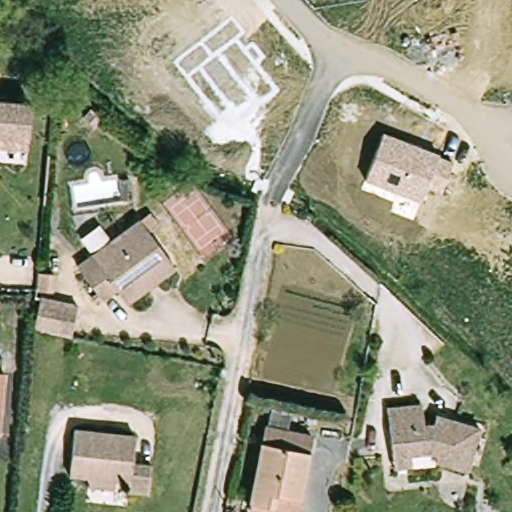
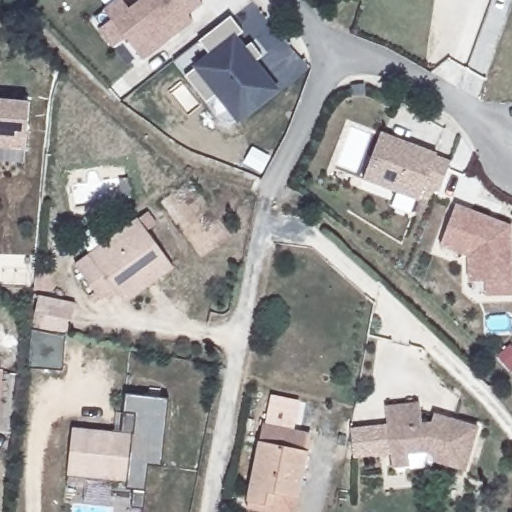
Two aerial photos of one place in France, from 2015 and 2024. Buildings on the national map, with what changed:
new [(141,55),(102,5),(109,0),(124,0),(128,4),(134,0),(199,0),(186,10),(191,16),(176,27),(171,32),(141,55)]
new [(186,75),(208,54),(200,41),(231,16),(244,32),(238,37),(246,46),(251,42),(263,57),(258,61),(281,90),(239,124),(216,95),(208,103),(186,75)]
unchanged [(1,138),(0,138),(0,102),(34,105),(31,140),(30,151),(0,148),(1,138)]
unchanged [(453,159),(441,190),(425,184),(420,199),(365,179),(382,131),(438,152),(453,159)]
unchanged [(128,179),(131,200),(121,201),(119,181),(128,179)]
new [(456,204),(512,225),(512,296),(486,296),(485,282),(468,282),(467,256),(440,247),(456,204)]
unchanged [(137,214),(174,265),(125,301),(115,287),(101,297),(74,261),(137,214)]
unchanged [(53,280),(52,298),(35,296),(36,278),(53,280)]
unchanged [(38,303),(75,310),(70,336),(56,333),(33,327),(38,303)]
new [(62,369),(28,368),(30,327),(33,327),(65,335),(62,369)]
unchanged [(0,393),(0,368),(3,368),(0,393)]
new [(126,395),(168,398),(160,466),(148,465),(149,459),(131,457),(133,430),(122,428),(126,395)]
unchanged [(397,470),(395,457),(390,409),(425,404),(427,425),(436,424),(439,415),(451,419),(483,428),(471,472),(439,463),(440,456),(431,453),(413,455),(415,468),(397,470)]
unchanged [(273,421),(274,407),(294,411),(291,424),(273,421)]
unchanged [(271,421),(273,421),(291,425),(291,424),(316,430),(303,492),(299,512),(297,512),(252,503),(253,496),(269,420),(271,421)]
unchanged [(86,482),(87,474),(68,472),(73,423),(133,430),(131,457),(149,459),(146,489),(127,487),(128,479),(113,477),(113,486),(86,482)]
new [(354,458),(351,428),(391,423),(395,454),(354,458)]

